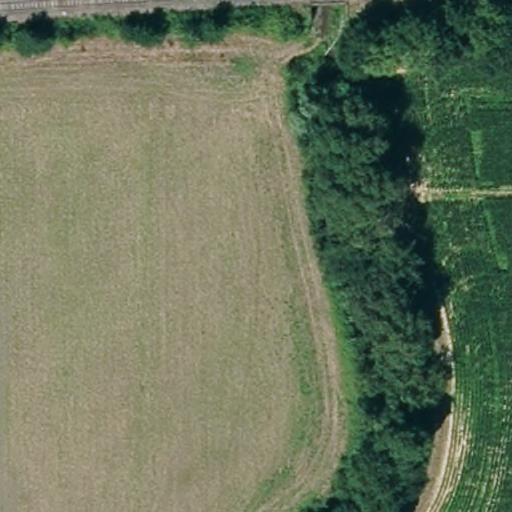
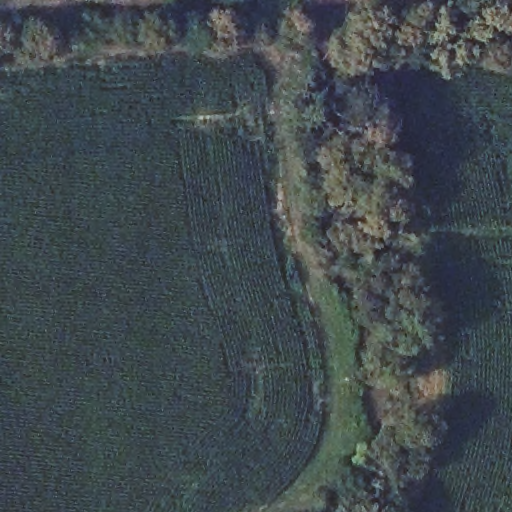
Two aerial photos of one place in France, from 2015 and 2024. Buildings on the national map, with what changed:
[]

